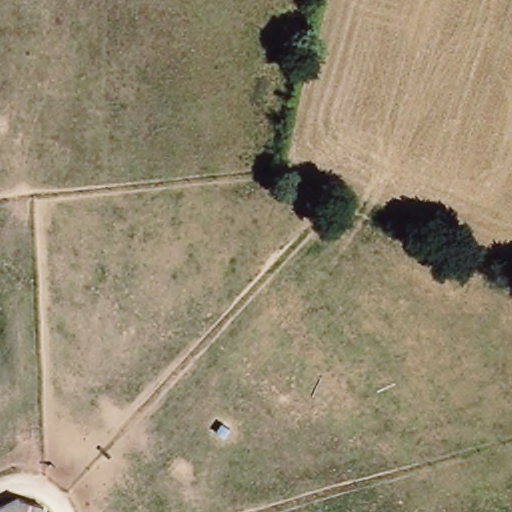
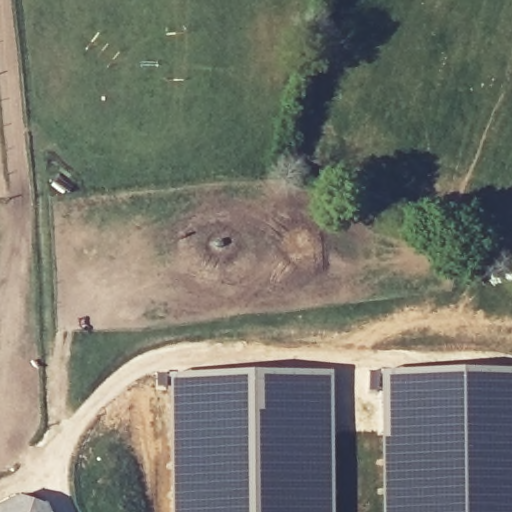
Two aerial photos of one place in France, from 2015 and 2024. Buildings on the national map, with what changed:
new [(512,512),(381,512),(381,407),(379,371),(512,370),(512,512)]
new [(335,512),(172,512),(171,425),(169,372),(334,372),(335,512)]
unchanged [(42,512),(1,512),(18,503),(42,512)]

